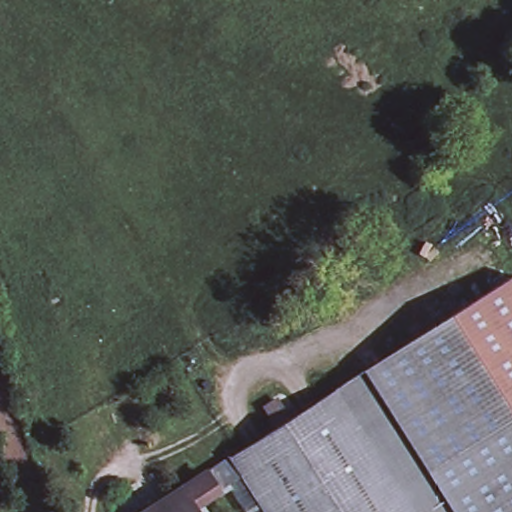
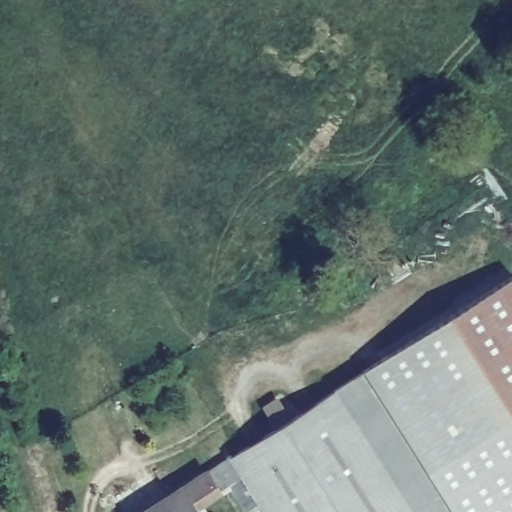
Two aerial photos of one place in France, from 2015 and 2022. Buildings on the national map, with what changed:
unchanged [(414,512),(337,390),(512,281),(512,512),(414,512)]
unchanged [(238,478),(192,506),(181,487),(226,459),(231,456),(277,427),(272,418),(287,408),(293,418),(337,390),(414,512),(267,512),(243,475),(238,478)]
unchanged [(192,506),(196,512),(139,512),(181,487),(192,506)]

